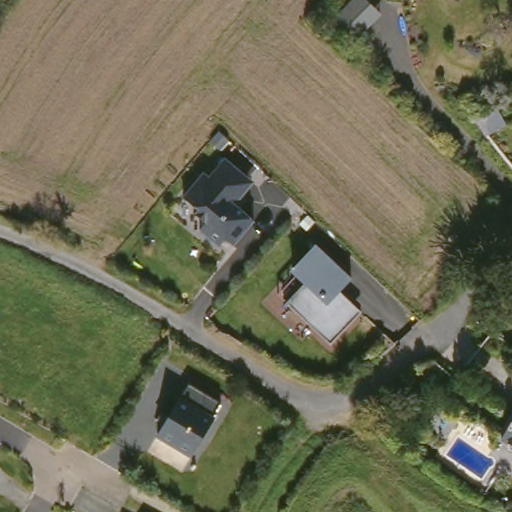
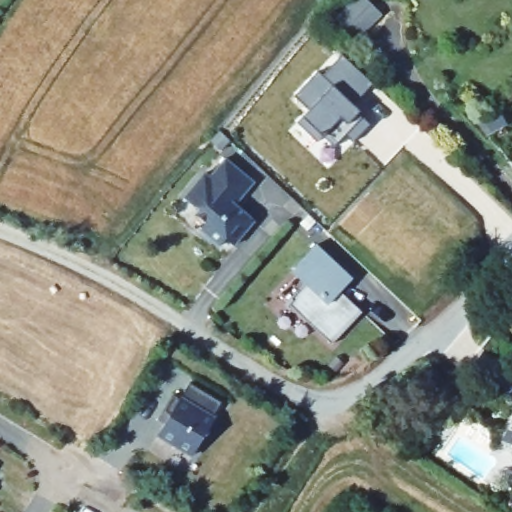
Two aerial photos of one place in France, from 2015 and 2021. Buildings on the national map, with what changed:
new [(370,2),(381,12),(368,26),(354,40),(333,20),(351,0),(368,0),(370,2)]
new [(372,82),(347,111),(354,115),(356,112),(370,125),(353,139),(346,136),(333,148),(321,136),(315,141),(293,122),(306,108),(292,94),(316,69),(322,74),(342,55),(372,82)]
unchanged [(217,155),(250,180),(233,202),(253,220),(235,240),(225,232),(217,242),(198,225),(208,213),(188,190),(217,155)]
unchanged [(314,325),(319,320),(288,299),(302,283),(287,272),(309,248),(349,276),(337,289),(362,306),(333,338),(314,325)]
unchanged [(185,380),(221,401),(191,455),(154,436),(185,380)]
unchanged [(512,432),(512,435),(511,434),(512,432)]

